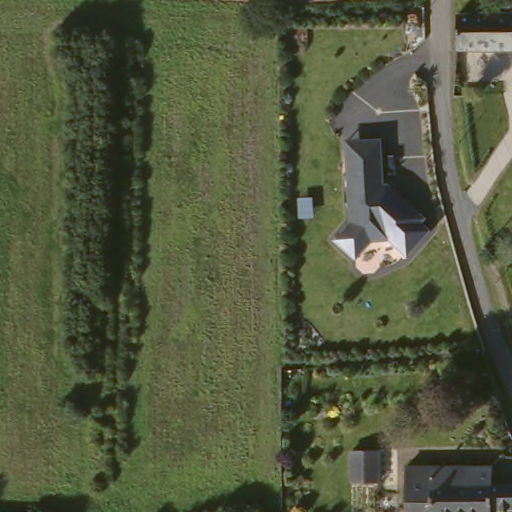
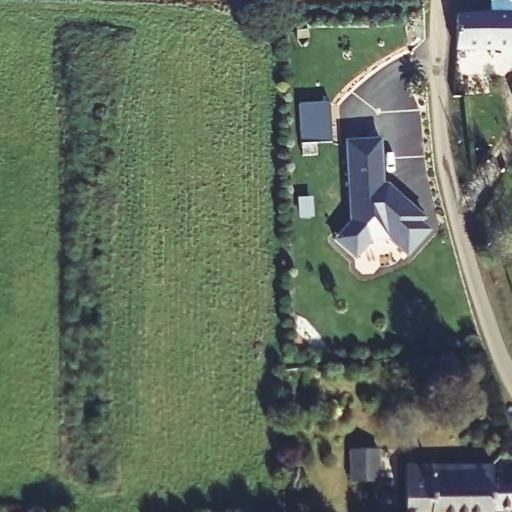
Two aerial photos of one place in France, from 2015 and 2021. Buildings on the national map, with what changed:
unchanged [(465,8),(497,7),(512,7),(512,45),(465,46),(465,8)]
new [(330,101),(333,142),(300,144),(298,104),(330,101)]
unchanged [(393,182),(406,196),(425,216),(420,220),(429,228),(405,253),(387,236),(370,236),(353,253),(335,235),(352,218),(350,156),(350,137),(385,137),(385,155),(385,183),(393,182)]
unchanged [(357,449),(387,452),(384,483),(353,478),(357,449)]
unchanged [(493,512),(409,512),(409,463),(493,464),(492,483),(512,483),(512,507),(493,506),(493,512)]

